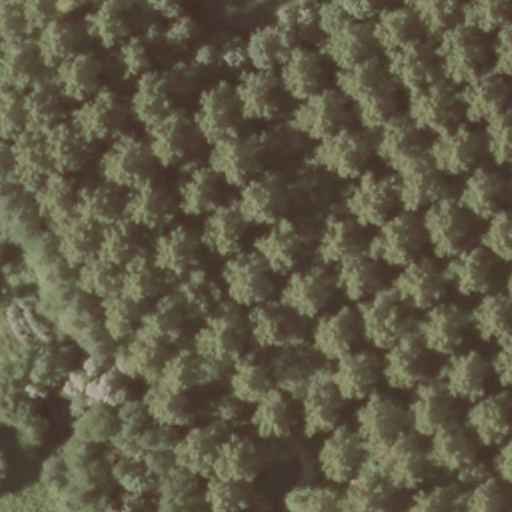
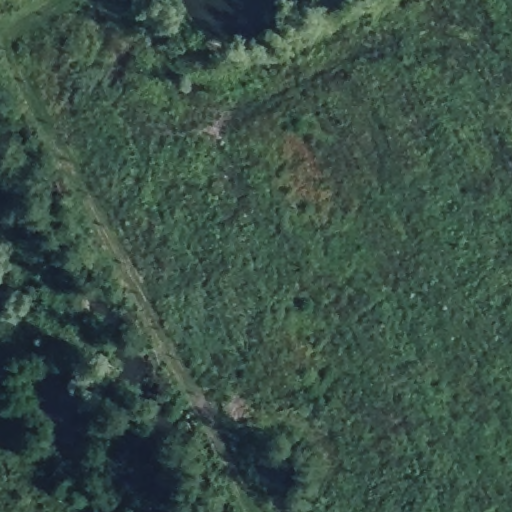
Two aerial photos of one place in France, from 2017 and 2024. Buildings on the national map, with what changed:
[]

